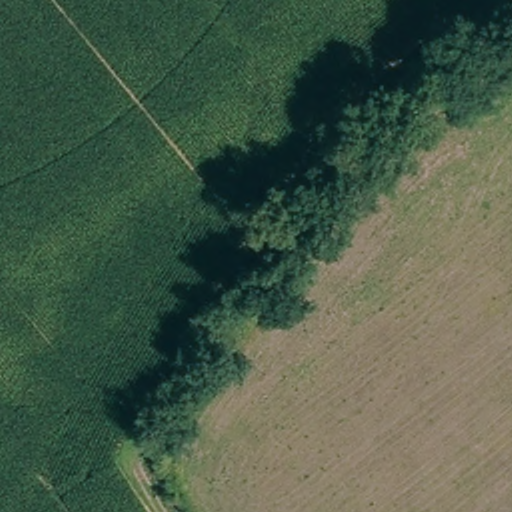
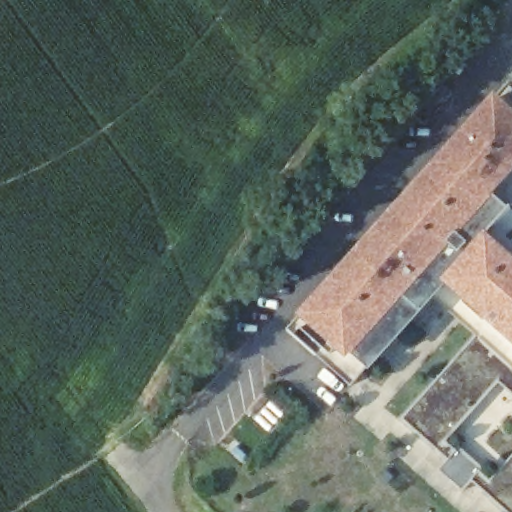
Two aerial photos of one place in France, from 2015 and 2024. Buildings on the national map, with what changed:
new [(433,298),(370,371),(348,385),(290,329),(296,315),(494,92),(507,84),(512,88),(512,205),(510,207),(492,227),(512,241),(512,393),(499,381),(447,439),(492,478),(512,455),(512,512),(507,512),(472,480),(461,492),(437,471),(447,458),(405,419),(475,337),(433,298)]

